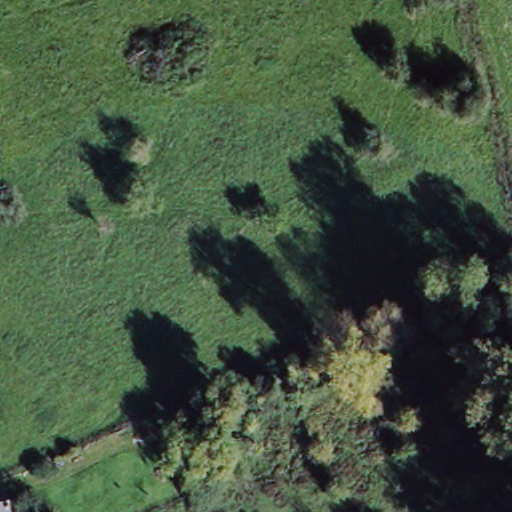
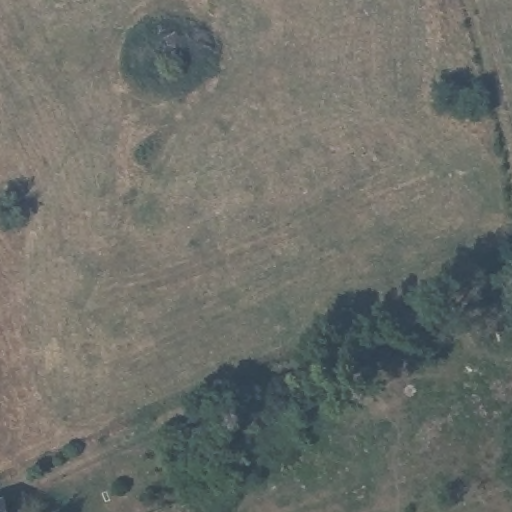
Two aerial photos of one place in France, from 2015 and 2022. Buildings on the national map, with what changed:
unchanged [(0,512),(0,505),(2,505),(4,512),(0,512)]

